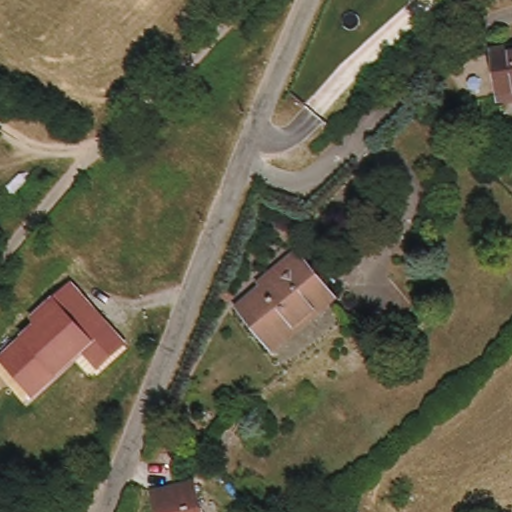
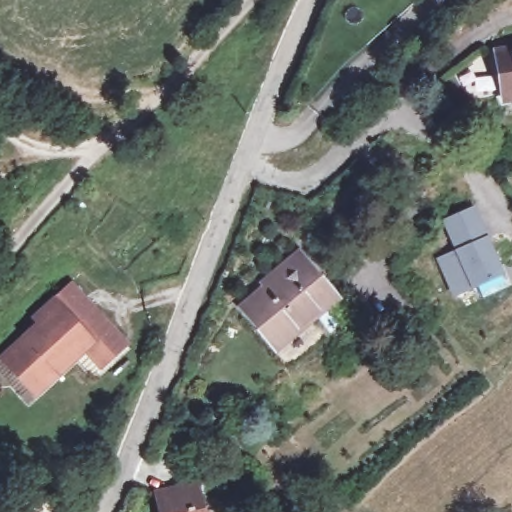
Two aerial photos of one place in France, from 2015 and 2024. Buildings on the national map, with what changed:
unchanged [(509,101),(502,54),(512,52),(512,100),(509,101)]
new [(503,276),(451,297),(434,257),(451,250),(436,215),(473,202),(503,276)]
unchanged [(253,301),(274,284),(287,273),(304,260),(311,267),(338,301),(286,341),(279,347),(246,306),(253,301)]
unchanged [(102,372),(85,356),(38,400),(0,359),(0,357),(34,326),(31,320),(69,288),(128,348),(102,372)]
unchanged [(166,512),(163,496),(203,487),(207,512),(166,512)]

